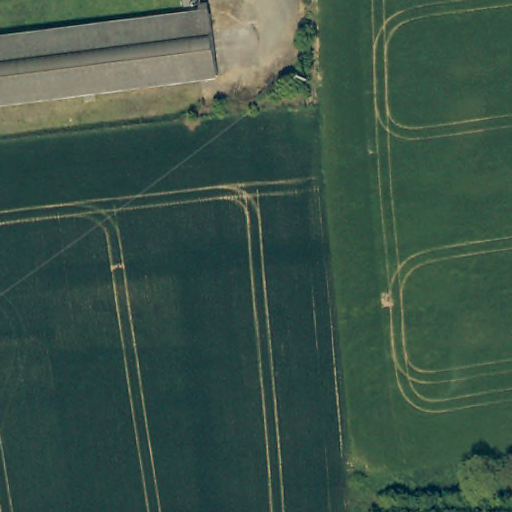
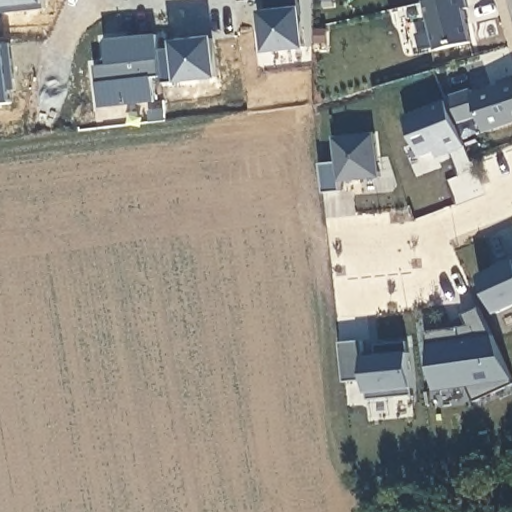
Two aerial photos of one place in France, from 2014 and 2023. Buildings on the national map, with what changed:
new [(270,50),(266,12),(270,12),(270,0),(302,0),(307,46),(270,50)]
new [(463,9),(471,43),(436,51),(425,2),(434,0),(466,0),(468,9),(463,9)]
demolished [(0,106),(0,43),(195,18),(194,8),(202,7),(211,79),(0,106)]
new [(165,75),(155,76),(157,99),(102,106),(99,64),(111,62),(108,38),(160,32),(161,47),(165,75)]
new [(177,46),(177,41),(213,38),(218,77),(165,82),(165,75),(161,47),(177,46)]
new [(14,41),(17,77),(11,77),(14,101),(0,102),(0,42),(14,41)]
new [(437,152),(422,158),(406,117),(447,102),(446,99),(471,90),(473,94),(500,86),(499,82),(512,78),(512,124),(485,133),(480,119),(457,128),(465,148),(438,159),(437,152)]
new [(377,134),(382,179),(341,182),(342,192),(325,193),(322,165),(337,163),(335,139),(377,134)]
new [(479,277),(512,262),(512,308),(496,315),(479,277)]
new [(512,385),(476,402),(467,387),(434,392),(427,333),(468,327),(463,317),(480,308),(512,381),(512,385)]
new [(365,357),(379,356),(376,346),(407,343),(408,352),(412,390),(412,396),(368,400),(367,394),(365,382),(345,382),(340,343),(362,342),(365,357)]

